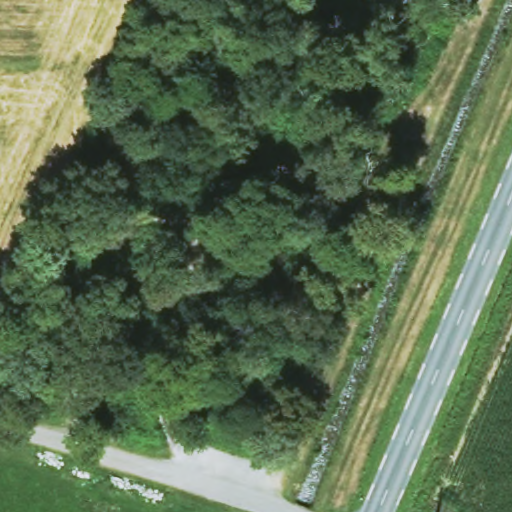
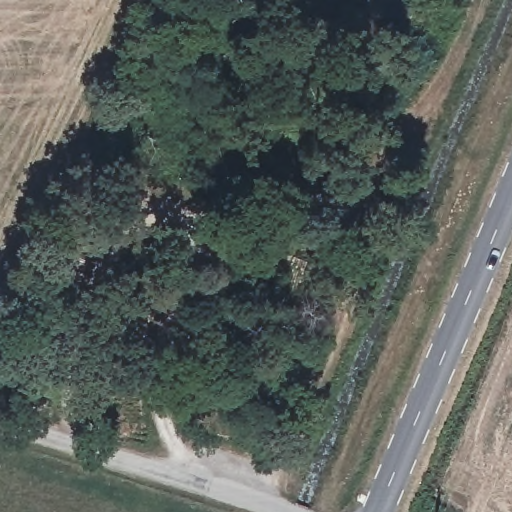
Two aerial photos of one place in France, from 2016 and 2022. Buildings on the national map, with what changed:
unchanged [(117,425),(89,425),(90,392),(91,362),(119,362),(117,425)]

